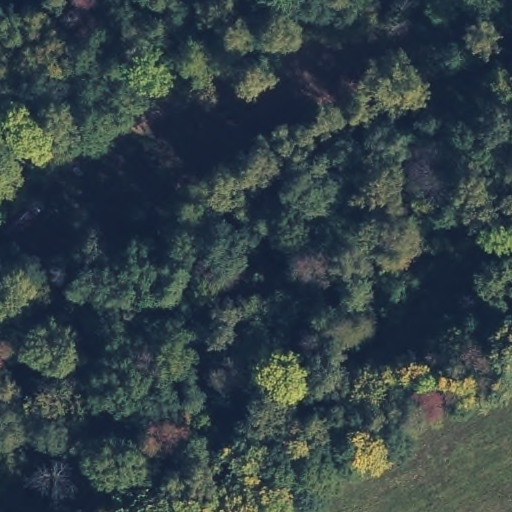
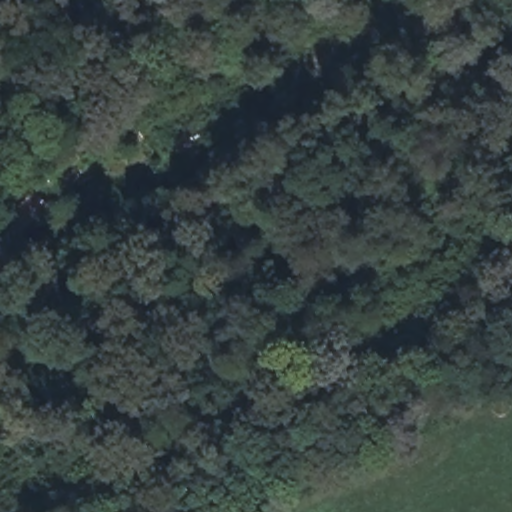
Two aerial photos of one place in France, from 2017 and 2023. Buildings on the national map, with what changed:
unchanged [(26,205),(38,216),(20,233),(10,220),(26,205)]

